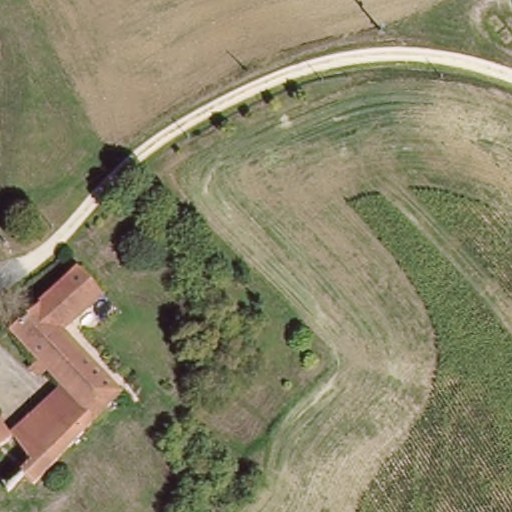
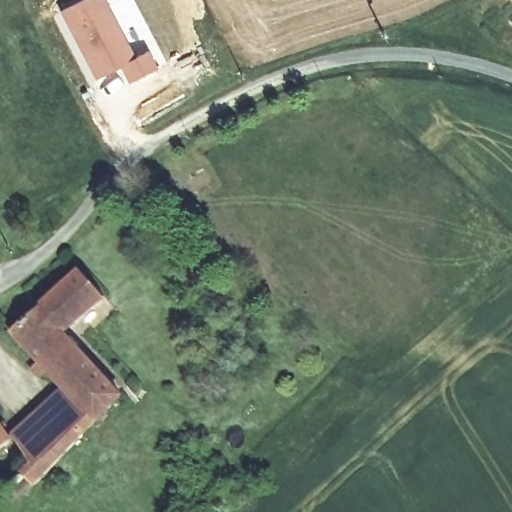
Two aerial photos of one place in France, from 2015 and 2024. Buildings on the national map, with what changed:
new [(66,9),(82,0),(108,0),(138,55),(151,48),(161,65),(136,78),(127,62),(102,76),(87,47),(84,41),(66,9)]
unchanged [(21,477),(33,463),(14,442),(0,451),(0,424),(6,434),(59,387),(9,333),(75,270),(106,298),(67,331),(124,395),(36,490),(21,477)]

